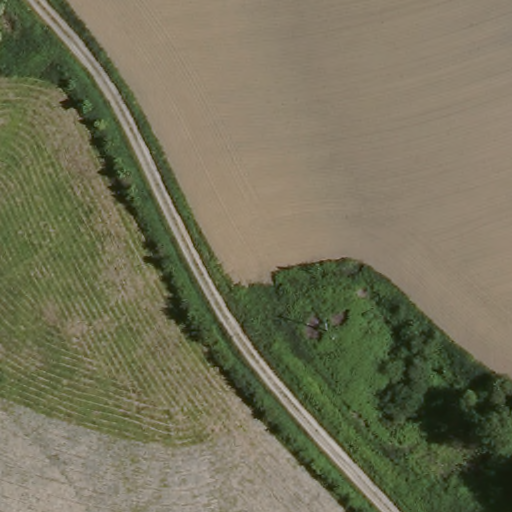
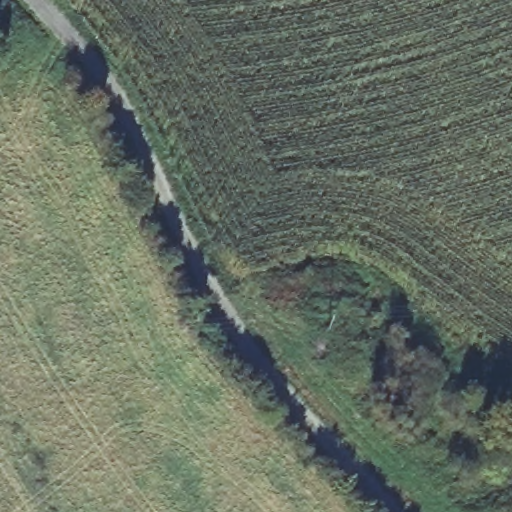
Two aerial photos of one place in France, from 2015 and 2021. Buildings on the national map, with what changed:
[]

